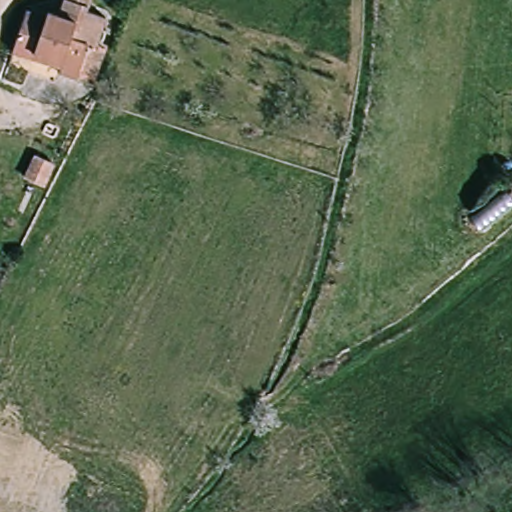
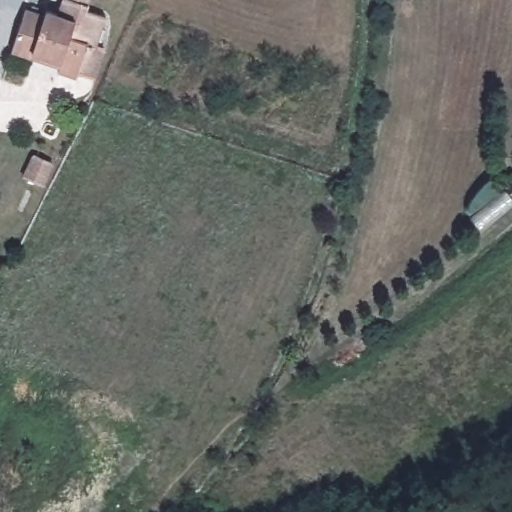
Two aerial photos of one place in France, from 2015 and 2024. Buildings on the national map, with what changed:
unchanged [(98,81),(83,76),(81,81),(63,75),(65,66),(38,56),(35,62),(15,55),(26,19),(45,26),(49,15),(60,19),(66,0),(67,0),(93,0),(90,8),(88,14),(108,20),(98,50),(108,53),(98,81)]
unchanged [(66,169),(58,189),(38,181),(48,161),(66,169)]

